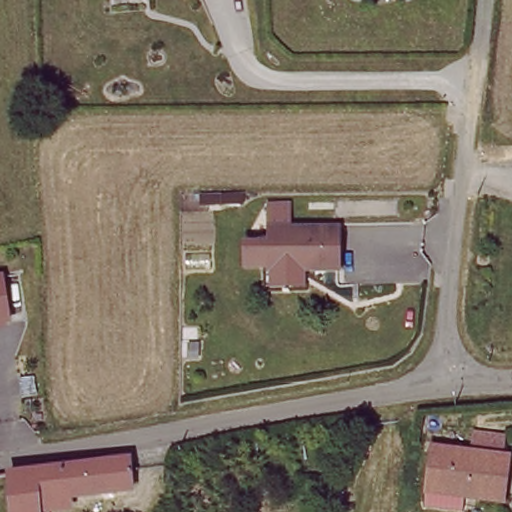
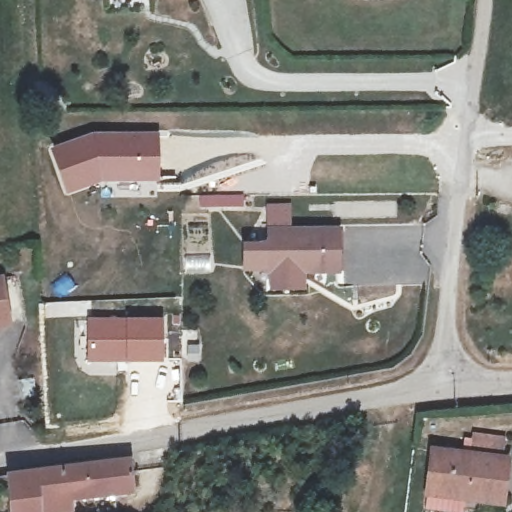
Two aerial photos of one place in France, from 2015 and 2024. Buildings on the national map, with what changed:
new [(96,133),(161,132),(160,180),(104,182),(69,196),(50,146),(96,133)]
unchanged [(273,285),(271,264),(269,227),(340,227),(338,269),(303,268),(303,284),(273,285)]
unchanged [(267,276),(241,278),(241,244),(268,241),(267,276)]
unchanged [(5,326),(0,327),(0,295),(5,326)]
new [(43,318),(42,302),(88,299),(87,316),(43,318)]
new [(164,364),(85,363),(87,316),(165,316),(164,364)]
unchanged [(505,439),(502,459),(512,460),(512,465),(505,501),(467,499),(464,505),(429,499),(437,449),(472,454),(474,434),(505,439)]
unchanged [(129,490),(43,507),(43,512),(11,512),(4,475),(124,454),(129,490)]

